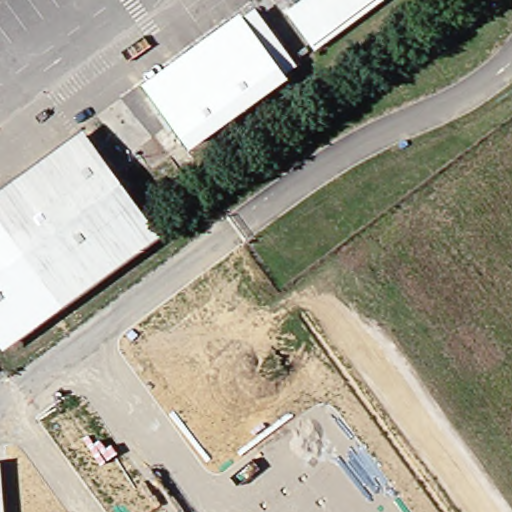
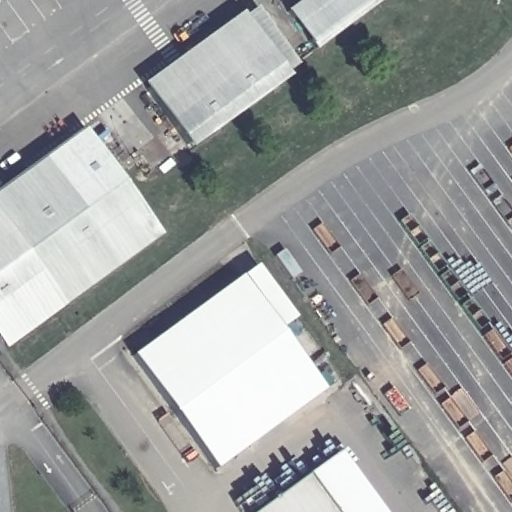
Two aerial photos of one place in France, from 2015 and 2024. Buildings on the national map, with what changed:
unchanged [(301,0),(385,0),(317,50),(287,10),(301,0)]
unchanged [(243,13),(246,18),(258,10),(300,64),(289,72),(293,78),(192,151),(144,84),(243,13)]
unchanged [(57,306),(0,229),(0,185),(77,130),(154,237),(57,306)]
unchanged [(57,306),(0,345),(0,344),(0,229),(57,306)]
new [(255,265),(296,320),(281,331),(324,389),(216,470),(132,356),(255,265)]
new [(383,512),(331,512),(305,476),(339,452),(383,512)]
new [(331,512),(255,512),(305,476),(331,512)]

